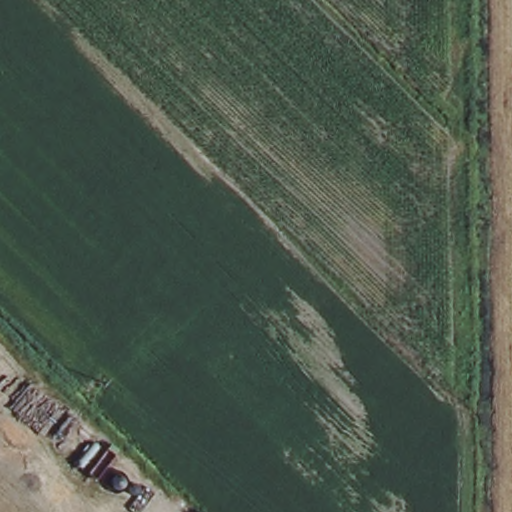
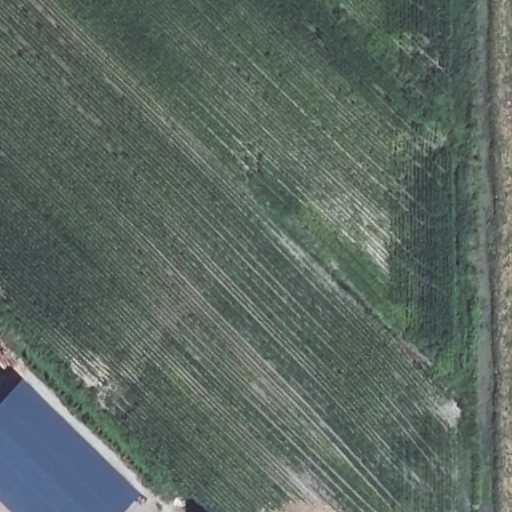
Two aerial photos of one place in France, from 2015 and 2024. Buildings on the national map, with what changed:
new [(10,512),(0,502),(0,396),(20,375),(136,490),(114,512),(10,512)]

